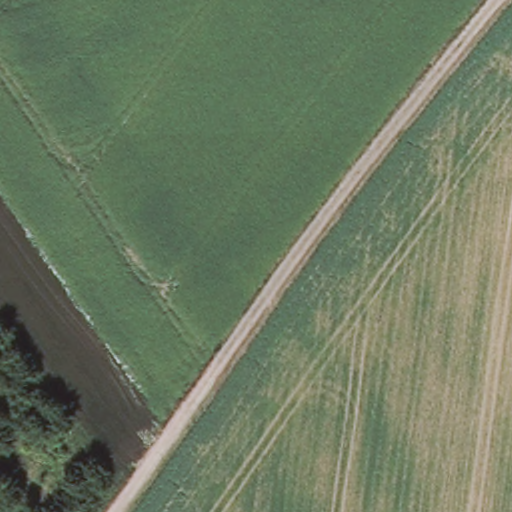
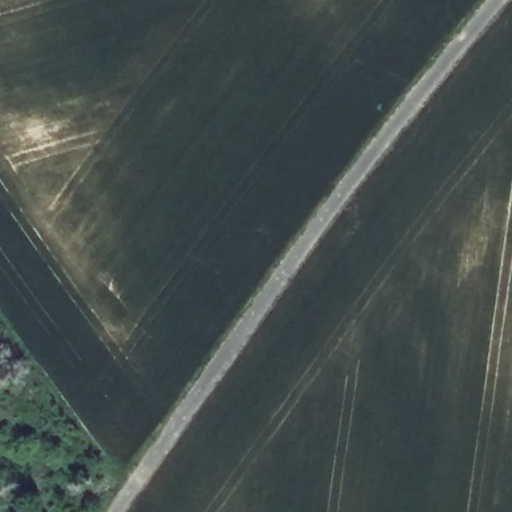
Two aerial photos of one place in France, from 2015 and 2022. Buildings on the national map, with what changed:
[]

